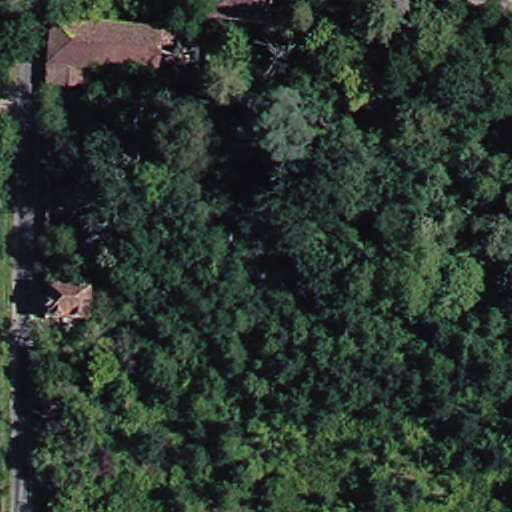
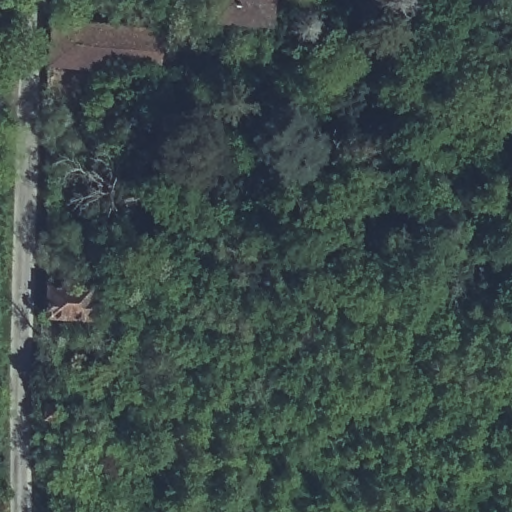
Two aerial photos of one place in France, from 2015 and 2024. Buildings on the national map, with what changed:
unchanged [(205,0),(265,0),(262,27),(203,21),(205,0)]
unchanged [(36,81),(37,66),(41,21),(204,35),(200,80),(181,79),(181,88),(168,86),(168,77),(85,71),(83,85),(36,81)]
unchanged [(84,295),(83,326),(40,325),(41,294),(84,295)]
unchanged [(44,407),(57,407),(56,420),(44,419),(44,407)]

